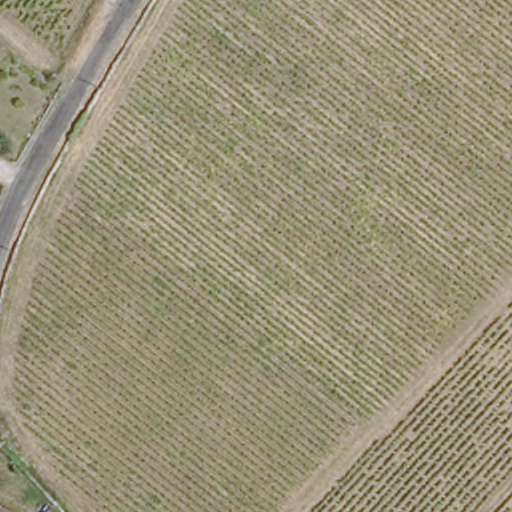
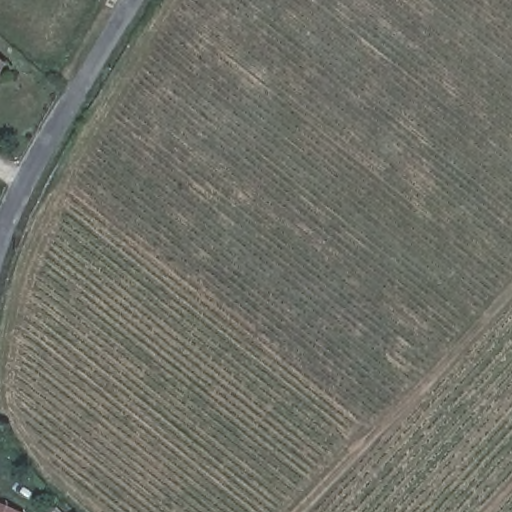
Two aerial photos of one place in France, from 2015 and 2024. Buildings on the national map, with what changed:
unchanged [(0,66),(0,65),(1,65),(0,66)]
unchanged [(5,445),(0,440),(0,420),(4,416),(19,433),(5,445)]
unchanged [(39,508),(45,501),(57,512),(24,512),(32,502),(39,508)]
unchanged [(17,512),(0,512),(0,504),(16,511),(17,512)]

